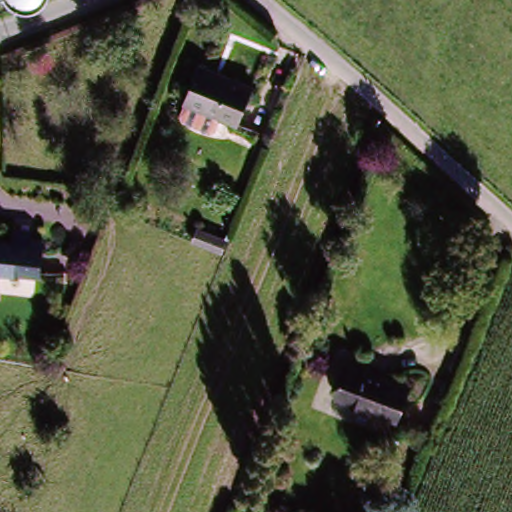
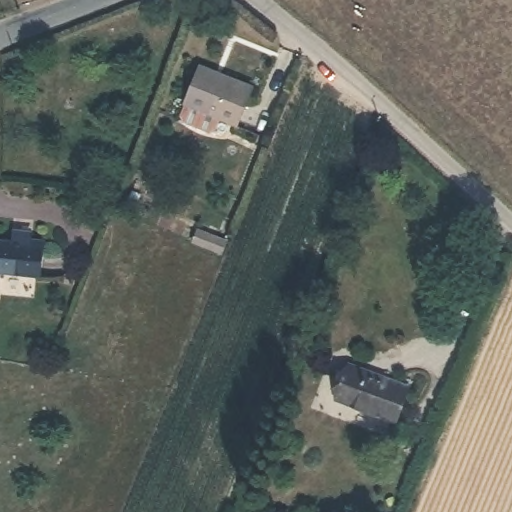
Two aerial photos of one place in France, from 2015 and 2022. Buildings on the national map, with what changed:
unchanged [(241,120),(189,99),(202,62),(255,85),(241,120)]
unchanged [(0,272),(0,239),(30,241),(28,239),(43,240),(42,274),(0,272)]
unchanged [(400,422),(340,401),(353,362),(415,383),(400,422)]

